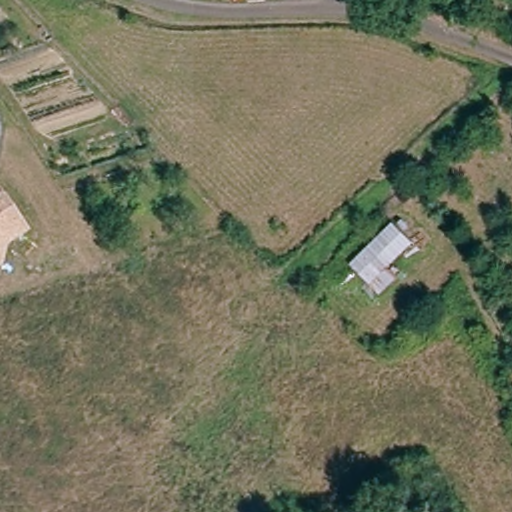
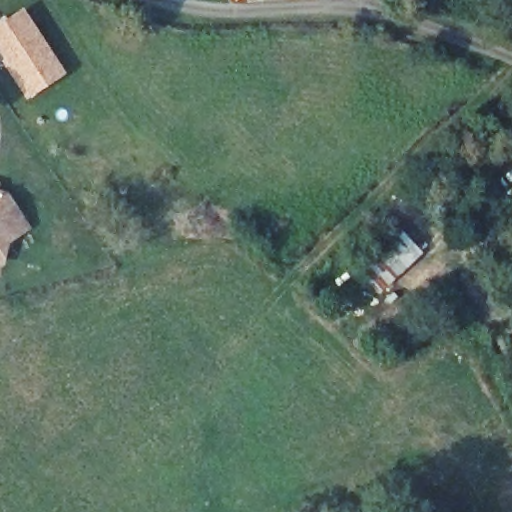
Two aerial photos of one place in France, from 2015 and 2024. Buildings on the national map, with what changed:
unchanged [(238,3),(235,0),(243,0),(238,3)]
new [(0,63),(0,22),(22,8),(64,74),(25,100),(1,62),(0,63)]
unchanged [(3,265),(0,265),(0,197),(4,198),(18,217),(26,230),(6,243),(3,265)]
unchanged [(416,243),(393,268),(401,274),(379,295),(352,263),(394,221),(416,243)]

